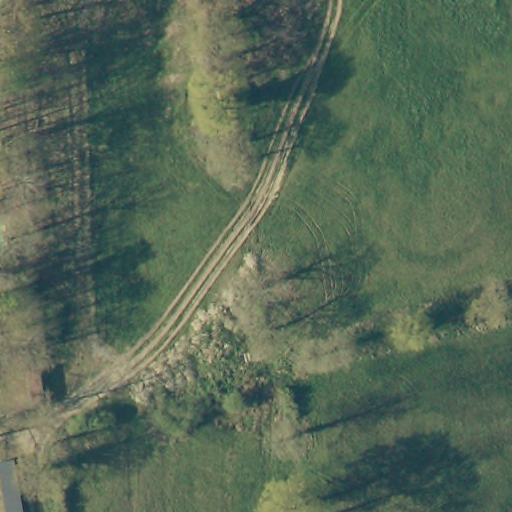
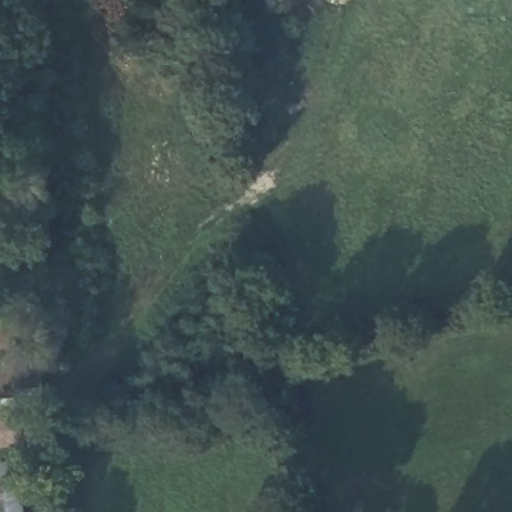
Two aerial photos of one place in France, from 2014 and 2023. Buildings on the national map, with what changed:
unchanged [(26,512),(0,512),(0,463),(20,461),(26,512)]

